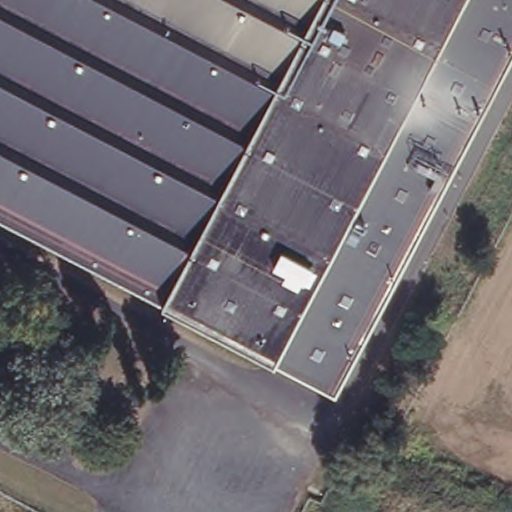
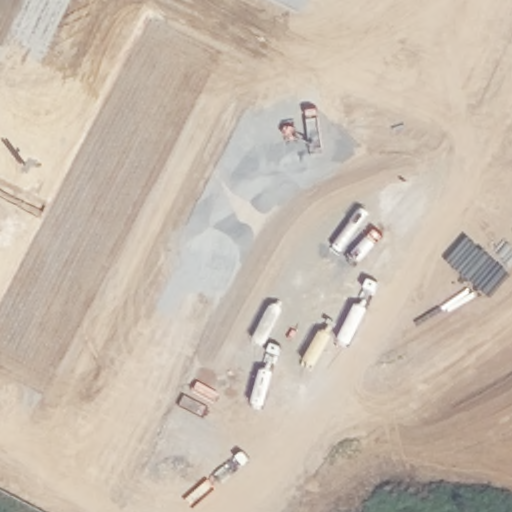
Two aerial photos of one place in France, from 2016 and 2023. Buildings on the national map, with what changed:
new [(157,0),(0,311),(0,0),(157,0)]
demolished [(274,355),(0,213),(0,0),(512,0),(512,48),(336,388),(274,355)]

